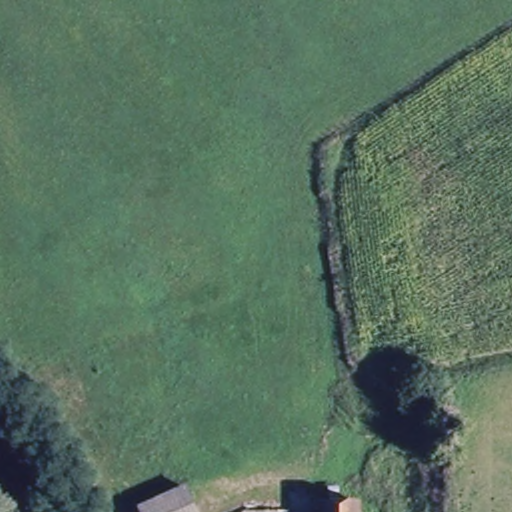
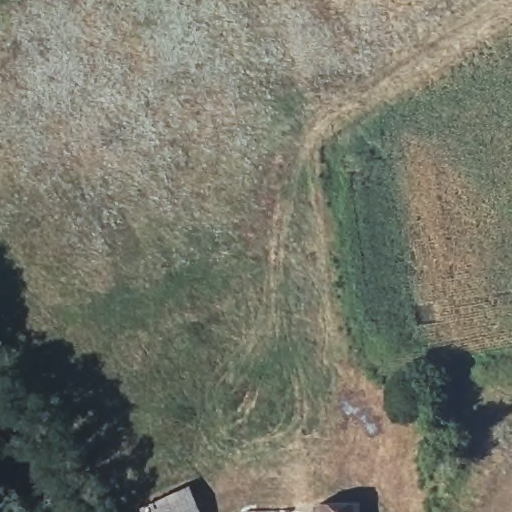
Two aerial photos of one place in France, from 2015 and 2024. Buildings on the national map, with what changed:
unchanged [(142,512),(136,501),(181,477),(199,512),(142,512)]
unchanged [(318,502),(357,501),(357,512),(318,512),(318,507),(318,502)]

